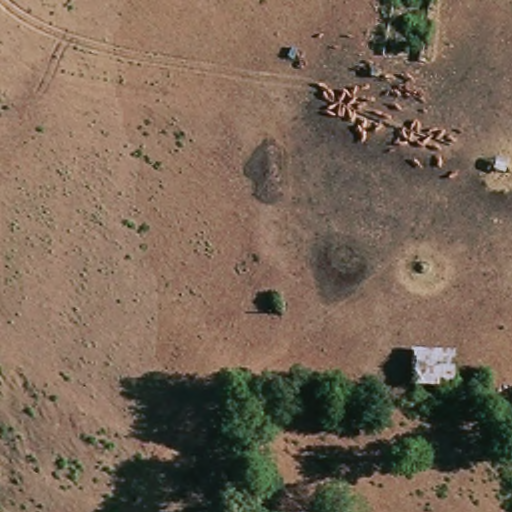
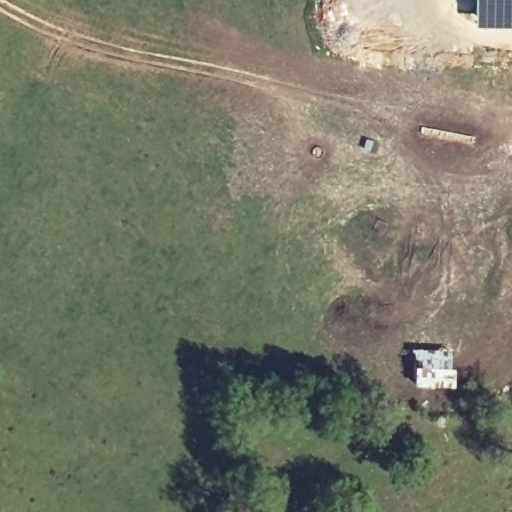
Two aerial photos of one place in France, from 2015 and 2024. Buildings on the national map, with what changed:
new [(477,0),(512,0),(512,29),(477,28),(477,0)]
unchanged [(411,351),(455,353),(452,391),(411,389),(411,351)]

